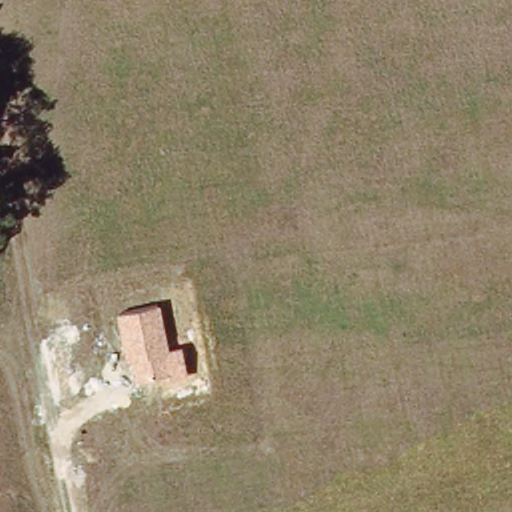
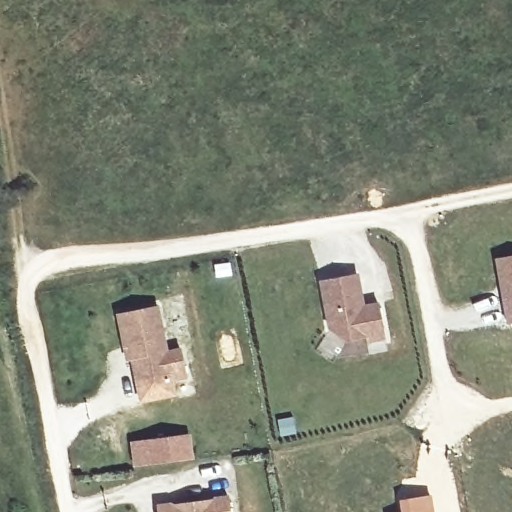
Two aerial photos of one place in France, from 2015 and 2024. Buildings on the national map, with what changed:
new [(512,255),(512,323),(511,323),(500,257),(512,255)]
new [(363,294),(365,306),(381,303),(387,338),(369,341),(369,337),(349,341),(332,329),(323,279),(359,273),(363,294)]
unchanged [(160,306),(169,352),(183,349),(188,379),(170,383),(167,374),(134,381),(131,362),(126,363),(116,314),(160,306)]
new [(191,433),(194,458),(135,467),(132,440),(191,433)]
new [(431,493),(434,512),(399,512),(397,498),(431,493)]
unchanged [(231,512),(156,512),(156,504),(229,495),(231,512)]

